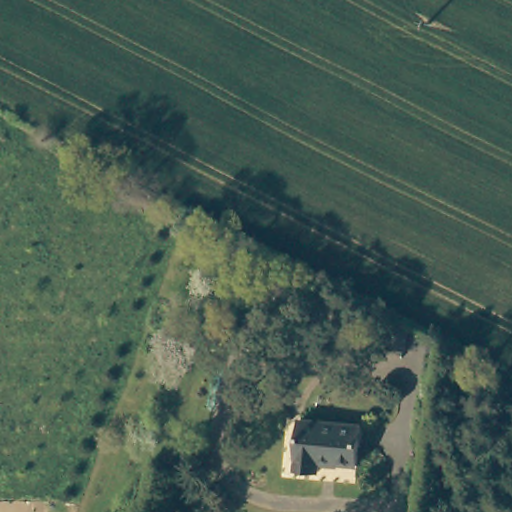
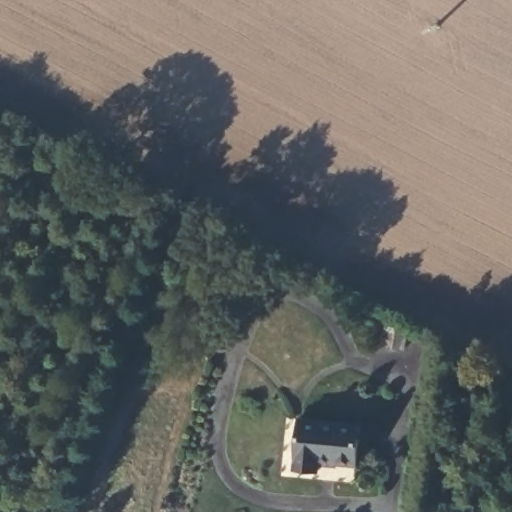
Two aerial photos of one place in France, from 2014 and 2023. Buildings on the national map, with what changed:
unchanged [(381,314),(400,317),(397,345),(376,341),(381,314)]
unchanged [(317,463),(316,472),(294,470),(300,421),(359,426),(354,465),(317,463)]

